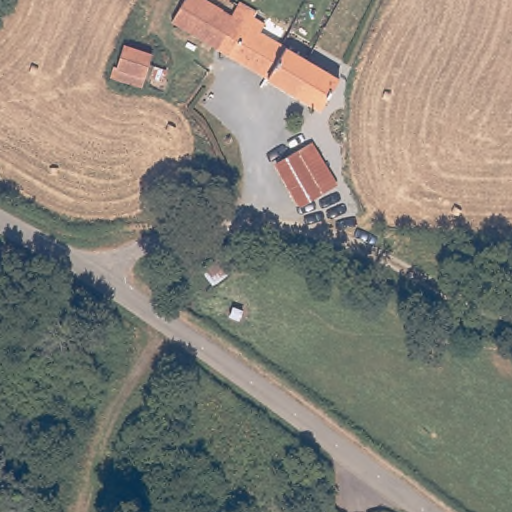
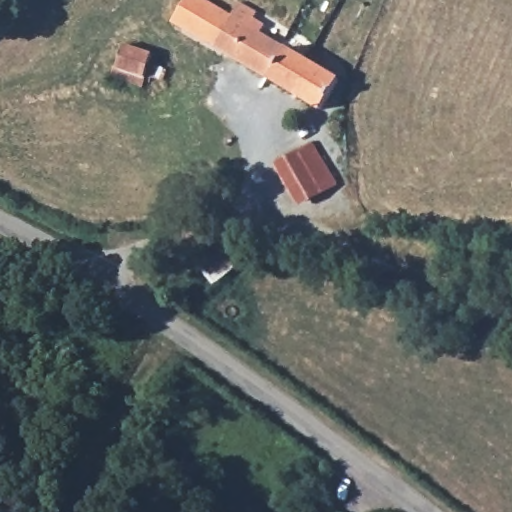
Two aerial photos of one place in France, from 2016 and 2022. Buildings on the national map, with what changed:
unchanged [(181,33),(200,0),(228,14),(233,5),(238,8),(242,0),(259,9),(256,17),(265,22),(258,35),(340,84),(321,119),(181,33)]
unchanged [(131,50),(165,64),(163,70),(175,77),(168,89),(155,85),(147,98),(115,80),(131,50)]
unchanged [(315,154),(336,189),(304,212),(283,176),(315,154)]
unchanged [(364,251),(359,269),(303,257),(310,239),(364,251)]

